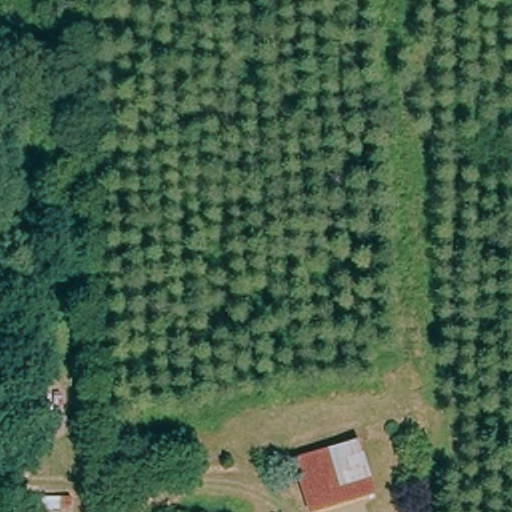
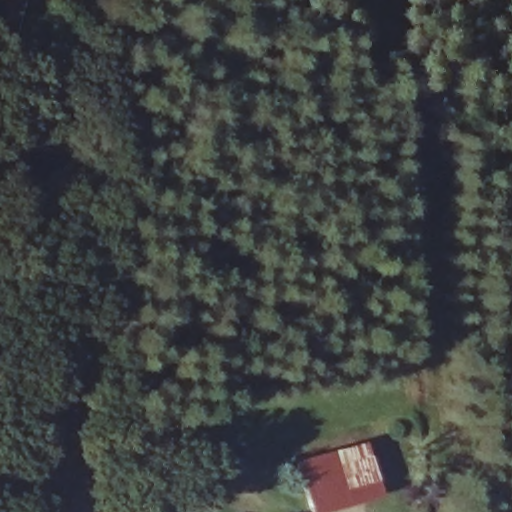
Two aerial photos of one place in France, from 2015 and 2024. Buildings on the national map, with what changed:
unchanged [(309,512),(292,459),(358,440),(379,497),(327,512),(309,512)]

